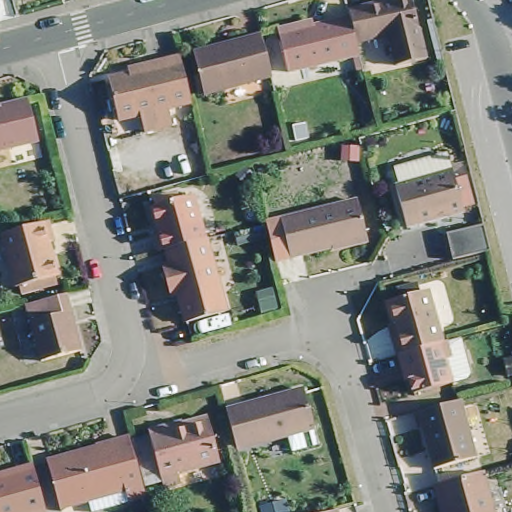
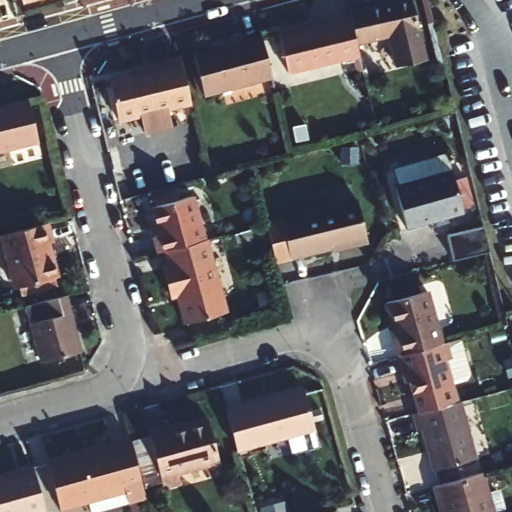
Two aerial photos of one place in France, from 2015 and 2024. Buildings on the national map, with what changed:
unchanged [(21,0),(23,0),(22,1),(21,0)]
unchanged [(410,0),(425,63),(395,71),(387,40),(355,48),(348,20),(347,13),(397,0),(410,0)]
unchanged [(357,57),(285,76),(274,33),(297,27),(310,24),(312,29),(348,20),(355,48),(357,57)]
unchanged [(270,75),(194,94),(190,74),(197,72),(190,50),(210,46),(210,48),(225,45),(225,41),(260,33),(270,75)]
unchanged [(189,104),(115,123),(105,81),(149,70),(147,64),(177,56),(189,104)]
unchanged [(24,104),(35,146),(0,154),(0,109),(24,104)]
unchanged [(356,153),(355,166),(337,166),(339,151),(356,153)]
unchanged [(245,169),(252,177),(243,186),(234,177),(242,169),(245,169)]
unchanged [(424,175),(425,179),(426,179),(427,179),(429,179),(432,172),(440,171),(442,175),(450,174),(451,178),(462,176),(470,205),(458,208),(459,211),(401,227),(390,185),(424,175)]
unchanged [(157,236),(150,208),(152,207),(151,200),(170,195),(172,202),(191,197),(202,241),(163,252),(155,254),(150,237),(157,236)]
unchanged [(359,203),(367,242),(289,260),(280,222),(359,203)]
unchanged [(20,301),(18,292),(5,237),(49,225),(54,247),(48,248),(57,283),(54,284),(56,291),(20,301)]
unchanged [(492,253),(457,263),(449,237),(485,227),(492,253)]
unchanged [(225,315),(183,327),(175,298),(169,300),(160,269),(167,267),(163,252),(202,241),(205,241),(225,315)]
unchanged [(388,322),(382,298),(423,288),(437,340),(427,343),(395,352),(392,353),(387,336),(384,324),(388,322)]
unchanged [(67,298),(81,352),(42,363),(28,309),(67,298)]
unchanged [(399,369),(395,352),(427,343),(437,340),(442,339),(447,356),(452,355),(459,380),(413,393),(410,379),(402,381),(399,369)]
unchanged [(512,379),(510,379),(505,357),(512,355),(512,379)]
unchanged [(303,389),(314,427),(237,448),(226,408),(303,389)]
unchanged [(435,408),(460,401),(476,460),(434,472),(422,430),(418,430),(415,414),(435,408)]
unchanged [(165,425),(166,427),(207,416),(219,461),(178,471),(180,480),(162,484),(147,430),(165,425)]
unchanged [(146,503),(113,512),(95,512),(93,505),(66,512),(60,512),(47,466),(112,449),(111,445),(129,441),(146,503)]
unchanged [(41,512),(0,512),(0,472),(28,466),(41,512)]
unchanged [(494,512),(444,512),(442,507),(440,508),(435,491),(484,477),(494,512)]
unchanged [(337,509),(337,512),(324,512),(337,509)]

